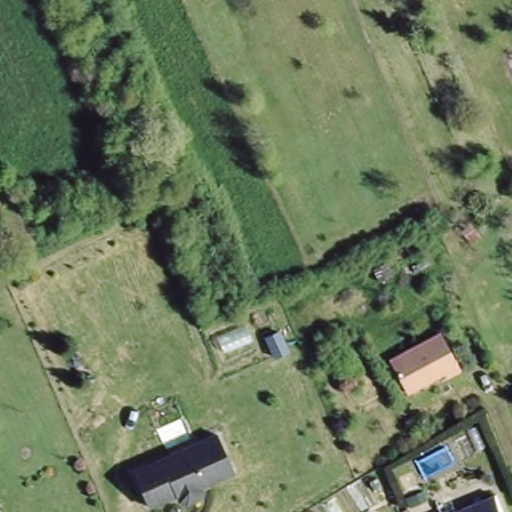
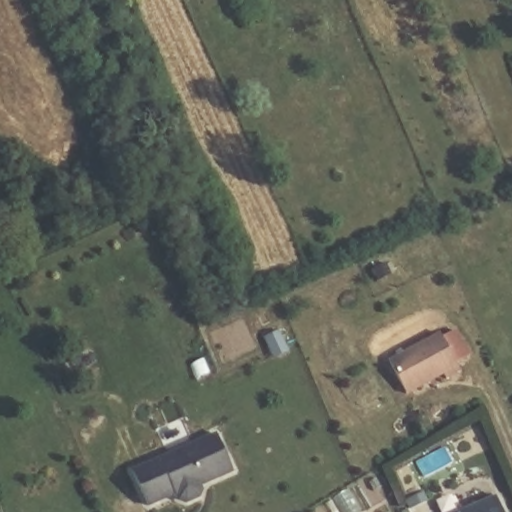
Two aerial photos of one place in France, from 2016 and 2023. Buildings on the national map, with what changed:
unchanged [(458,369),(444,375),(442,370),(404,388),(388,355),(439,330),(458,369)]
unchanged [(224,463),(198,474),(196,471),(189,474),(191,477),(193,482),(189,489),(176,495),(171,493),(168,486),(137,498),(124,465),(209,428),(224,463)]
unchanged [(491,493),(499,512),(447,512),(491,493)]

